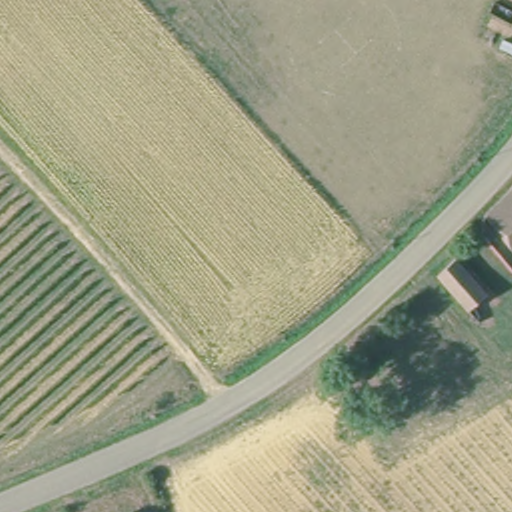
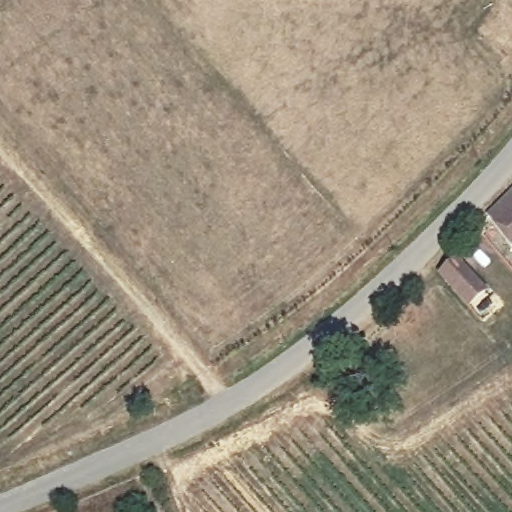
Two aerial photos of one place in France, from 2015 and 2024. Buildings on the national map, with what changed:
unchanged [(512,183),(512,236),(487,204),(512,183)]
unchanged [(439,266),(459,251),(487,291),(467,307),(439,266)]

